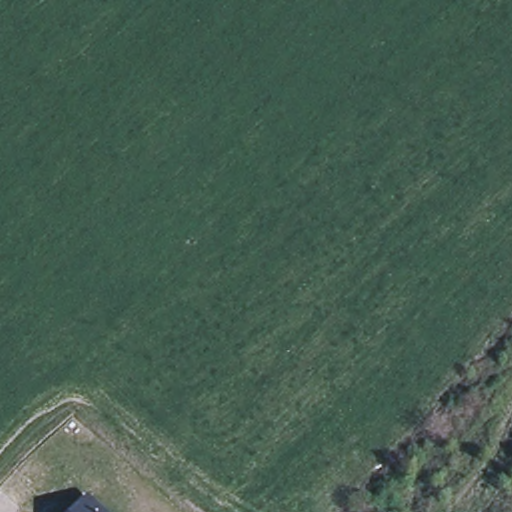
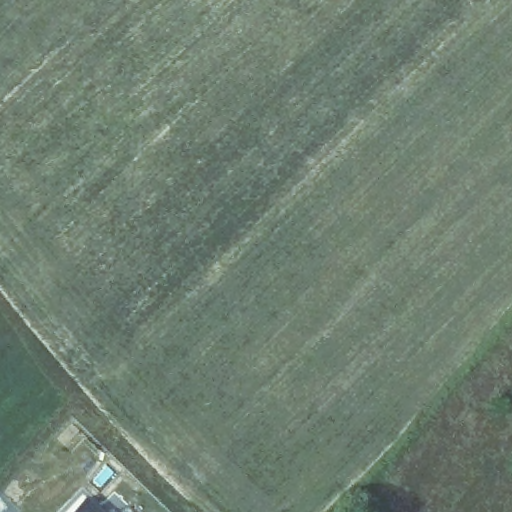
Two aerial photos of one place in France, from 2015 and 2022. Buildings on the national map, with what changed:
unchanged [(98,512),(75,512),(86,501),(98,512)]

